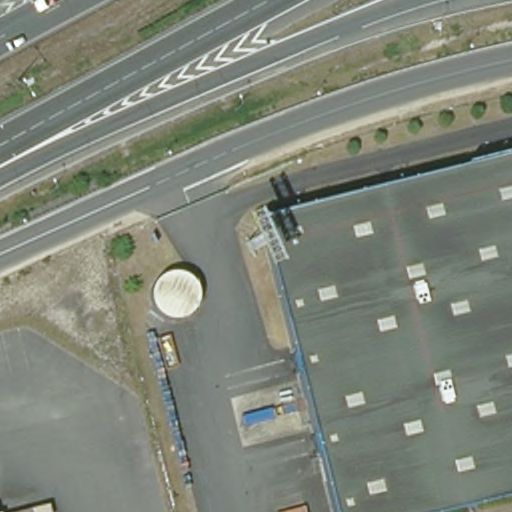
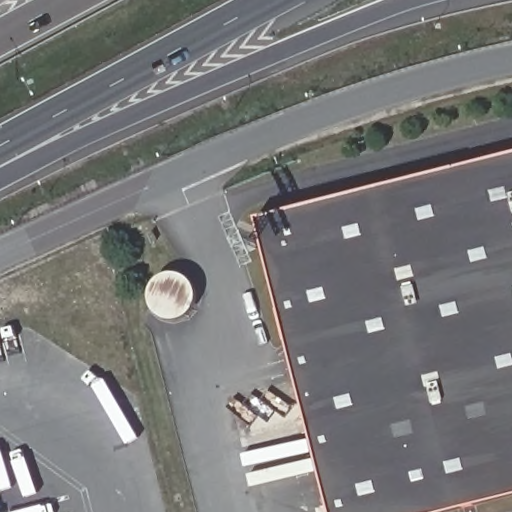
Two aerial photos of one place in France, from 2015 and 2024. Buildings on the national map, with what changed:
unchanged [(256,224),(512,159),(512,501),(469,512),(331,512),(256,224)]

